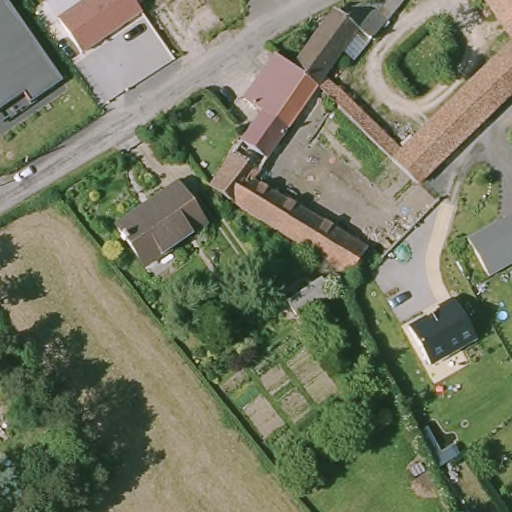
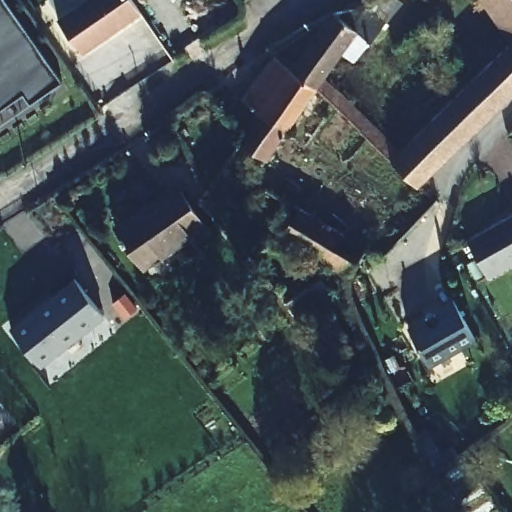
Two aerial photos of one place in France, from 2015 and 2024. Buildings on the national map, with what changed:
unchanged [(30,103),(24,94),(0,110),(0,0),(5,0),(60,81),(30,103)]
unchanged [(82,55),(57,19),(84,0),(132,0),(141,14),(82,55)]
unchanged [(323,69),(316,84),(289,65),(326,9),(368,3),(370,0),(381,0),(388,6),(361,49),(348,69),(331,58),(323,69)]
unchanged [(508,37),(478,0),(512,0),(512,91),(429,179),(419,189),(316,84),(323,69),(405,152),(508,37)]
unchanged [(266,57),(273,59),(289,65),(316,84),(284,134),(259,116),(241,103),(266,57)]
unchanged [(259,116),(284,134),(256,177),(361,252),(341,279),(213,190),(246,134),(259,116)]
unchanged [(181,184),(205,221),(139,264),(116,228),(181,184)]
unchanged [(512,214),(512,264),(487,278),(467,238),(512,214)]
unchanged [(425,218),(432,227),(418,242),(391,269),(384,261),(425,218)]
new [(78,279),(106,318),(38,366),(10,327),(78,279)]
unchanged [(318,281),(329,297),(298,315),(290,300),(318,281)]
unchanged [(453,301),(474,339),(428,365),(407,325),(453,301)]

